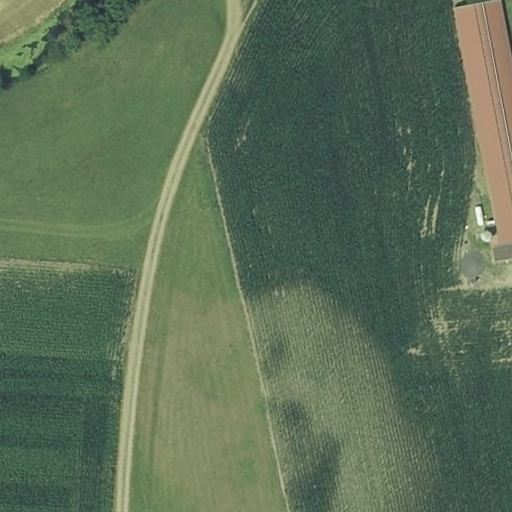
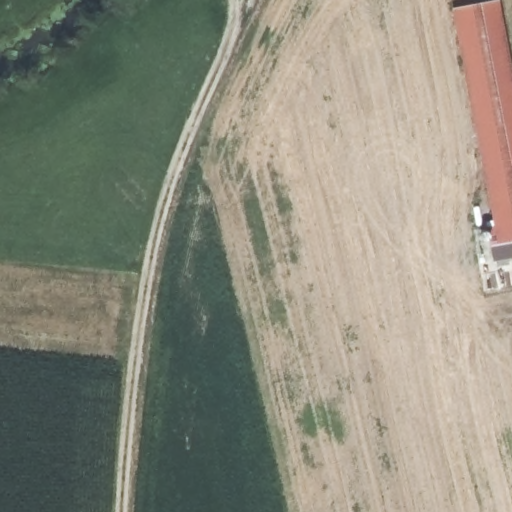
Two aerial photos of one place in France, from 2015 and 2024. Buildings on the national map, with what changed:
unchanged [(502,0),(512,56),(512,254),(497,256),(495,240),(501,238),(456,3),(470,0),(502,0)]

